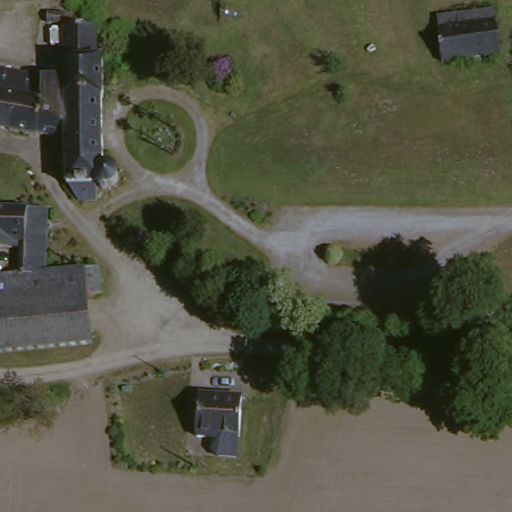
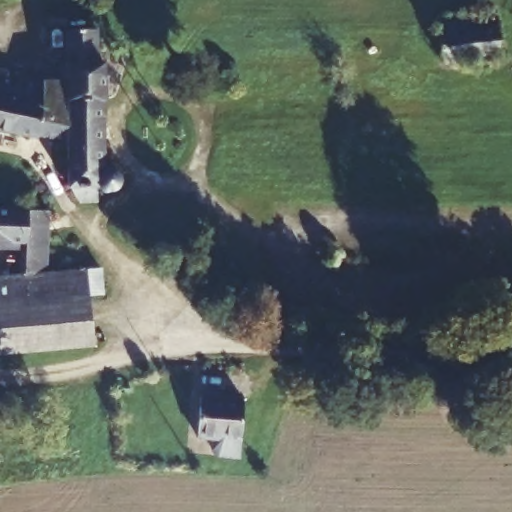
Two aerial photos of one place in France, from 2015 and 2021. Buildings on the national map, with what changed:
unchanged [(496,69),(444,73),(439,31),(493,26),(496,69)]
unchanged [(96,35),(94,67),(64,67),(63,35),(96,35)]
unchanged [(61,189),(63,150),(63,96),(63,95),(64,67),(94,67),(104,67),(104,70),(104,75),(104,165),(106,167),(121,173),(124,182),(123,185),(120,190),(119,190),(112,195),(96,193),(94,204),(71,205),(61,189)]
unchanged [(63,96),(63,150),(0,135),(0,78),(63,95),(63,96)]
unchanged [(41,276),(19,277),(19,251),(0,251),(0,225),(40,225),(41,276)]
unchanged [(41,276),(84,271),(86,282),(102,281),(104,309),(89,311),(91,356),(0,363),(0,279),(19,277),(41,276)]
unchanged [(243,402),(239,444),(237,465),(228,464),(222,457),(223,443),(196,441),(200,397),(243,402)]

